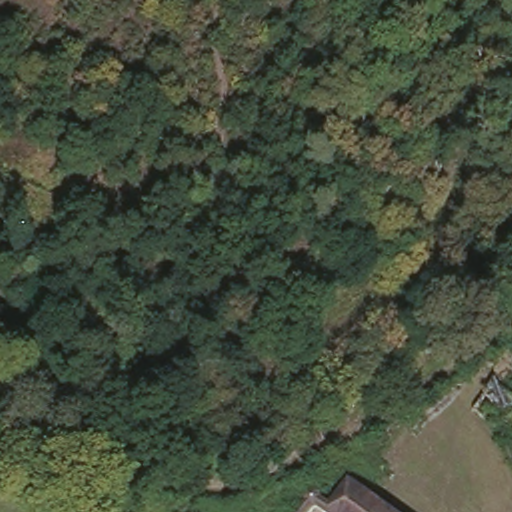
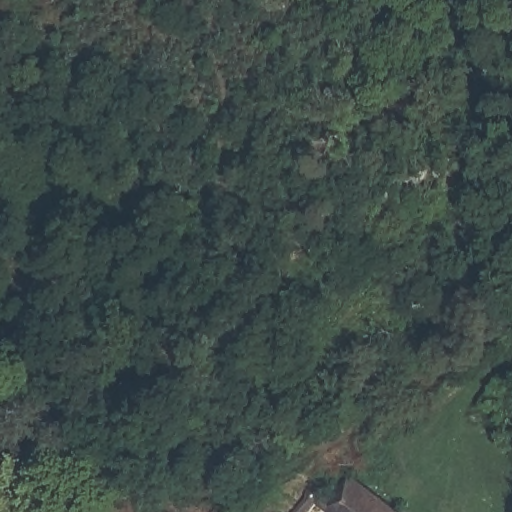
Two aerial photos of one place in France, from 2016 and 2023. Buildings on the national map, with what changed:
unchanged [(396,512),(326,512),(319,505),(343,473),(396,512)]

